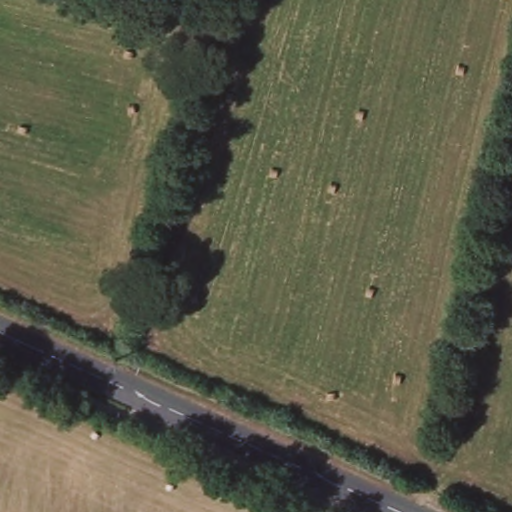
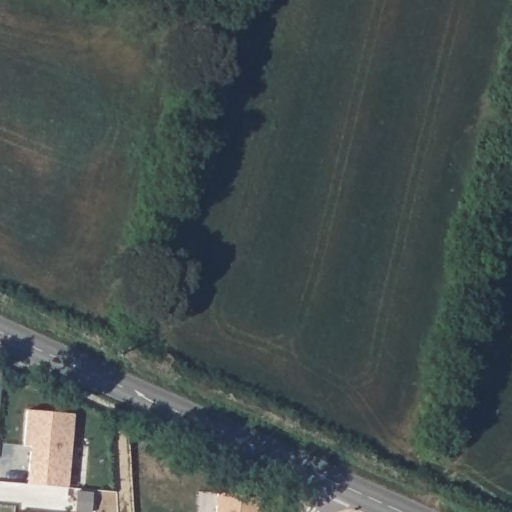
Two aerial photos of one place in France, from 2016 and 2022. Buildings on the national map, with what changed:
new [(27,412),(74,416),(68,489),(28,486),(31,448),(24,447),(27,412)]
new [(260,497),(258,512),(215,512),(217,493),(260,497)]

